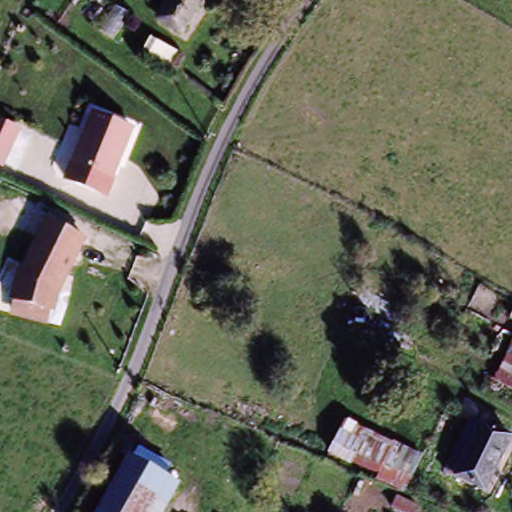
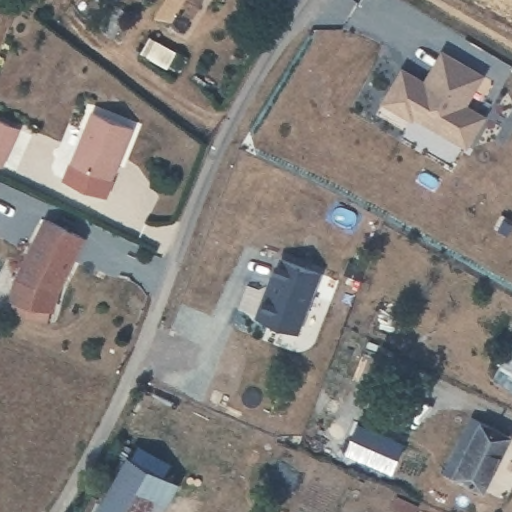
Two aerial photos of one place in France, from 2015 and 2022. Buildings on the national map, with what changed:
unchanged [(180,39),(152,23),(165,0),(202,0),(180,39)]
new [(471,102),(490,112),(472,143),(417,116),(419,112),(390,95),(408,64),(430,76),(447,47),(488,71),(471,102)]
unchanged [(68,157),(100,112),(134,138),(103,182),(68,157)]
unchanged [(0,165),(0,120),(18,129),(1,165),(0,165)]
unchanged [(55,313),(51,311),(50,325),(10,315),(12,301),(9,300),(14,277),(44,217),(86,239),(55,313)]
new [(323,272),(301,331),(262,316),(285,257),(323,272)]
unchanged [(512,306),(512,321),(506,317),(512,306)]
unchanged [(512,339),(512,392),(491,381),(512,339)]
unchanged [(377,470),(347,457),(353,440),(342,435),(350,422),(389,441),(386,447),(413,461),(402,489),(373,476),(377,470)]
unchanged [(445,478),(470,424),(507,440),(482,494),(445,478)]
unchanged [(92,512),(123,455),(180,484),(164,512),(92,512)]

